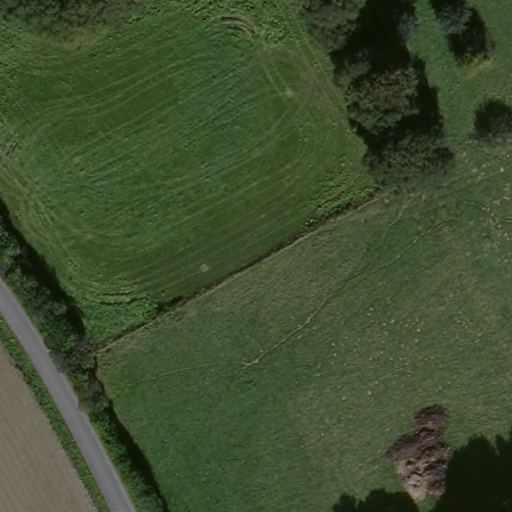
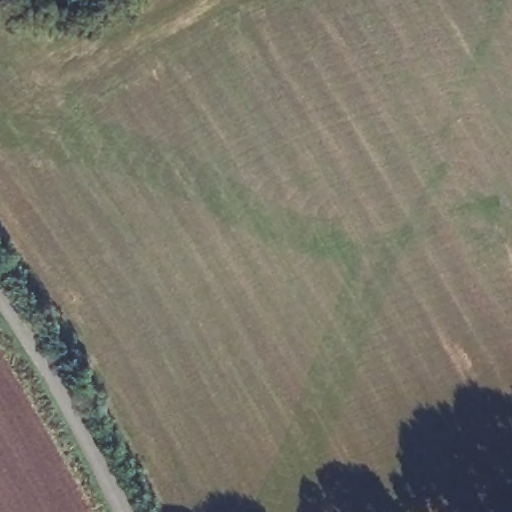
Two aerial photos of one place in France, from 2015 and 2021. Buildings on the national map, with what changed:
[]

